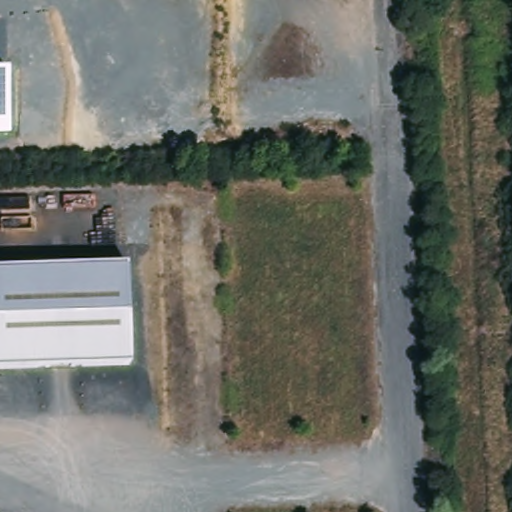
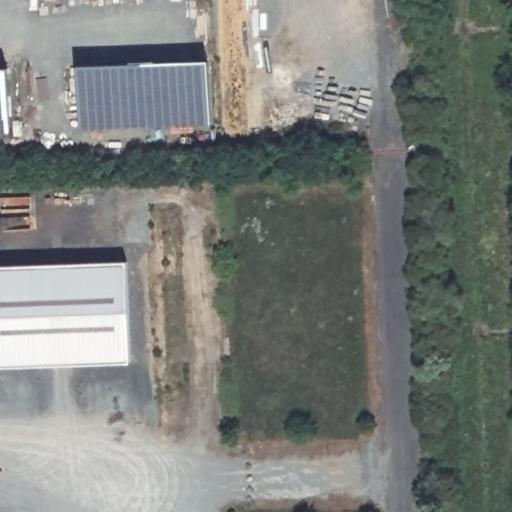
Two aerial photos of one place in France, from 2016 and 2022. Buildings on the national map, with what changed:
new [(211,67),(214,129),(83,134),(80,71),(211,67)]
unchanged [(8,70),(10,134),(0,134),(0,70),(8,70)]
unchanged [(128,269),(130,330),(131,369),(0,373),(0,273),(128,269)]

